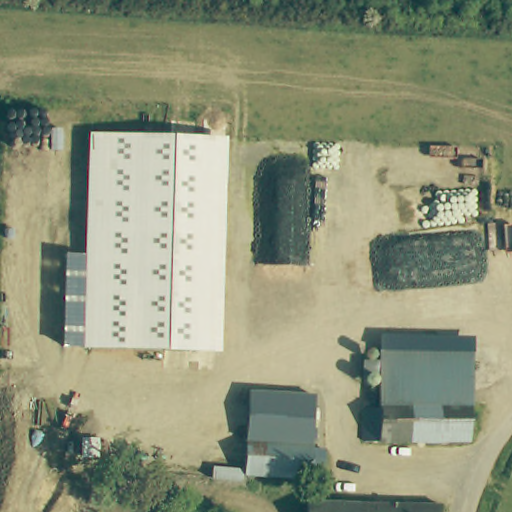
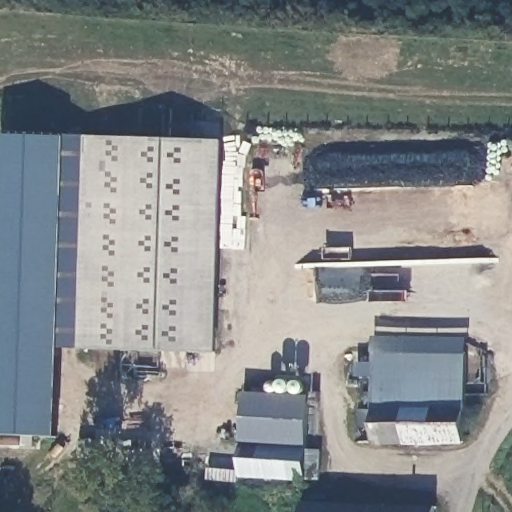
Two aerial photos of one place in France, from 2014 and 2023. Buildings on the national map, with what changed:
new [(0,433),(0,213),(3,134),(70,136),(69,134),(88,134),(84,255),(64,255),(62,348),(61,436),(0,433)]
unchanged [(226,138),(220,354),(81,349),(62,348),(64,255),(84,255),(88,134),(226,138)]
unchanged [(382,413),(382,353),(472,356),(468,448),(378,447),(366,446),(364,411),(382,413)]
unchanged [(316,396),(312,481),(244,479),(250,393),(316,396)]
unchanged [(305,502),(440,505),(440,512),(304,512),(305,502)]

